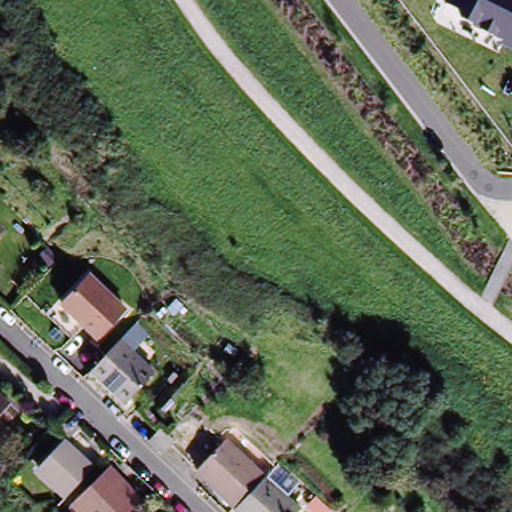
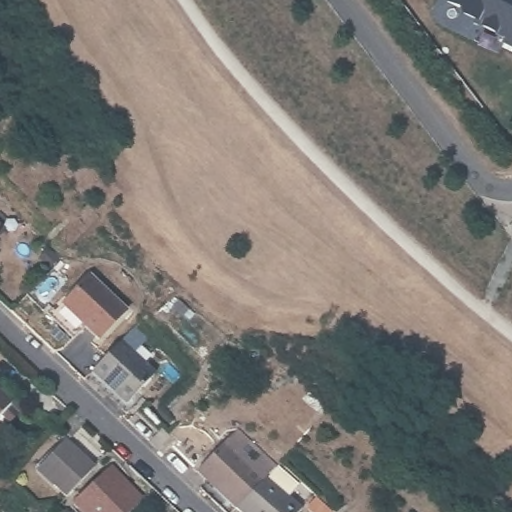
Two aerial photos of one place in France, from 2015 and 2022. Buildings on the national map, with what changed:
unchanged [(502,45),(503,40),(473,28),(474,26),(459,18),(458,8),(443,1),(444,0),(512,0),(512,49),(502,45)]
unchanged [(0,235),(0,229),(3,232),(0,235)]
unchanged [(96,340),(61,305),(89,276),(124,311),(96,340)]
unchanged [(124,333),(158,365),(134,389),(138,393),(128,404),(90,368),(95,363),(124,333)]
unchanged [(0,343),(4,348),(0,352),(0,343)]
unchanged [(11,425),(2,416),(0,418),(0,395),(20,415),(11,425)]
unchanged [(161,433),(149,420),(160,408),(167,414),(170,417),(174,421),(161,433)]
unchanged [(91,463),(61,493),(50,482),(54,479),(38,463),(65,437),(91,463)]
unchanged [(194,470),(224,439),(263,476),(234,508),(194,470)]
unchanged [(141,494),(122,512),(84,512),(74,501),(113,464),(141,494)]
unchanged [(263,476),(297,508),(293,512),(239,512),(234,508),(263,476)]
unchanged [(328,511),(326,512),(310,512),(304,507),(313,497),(328,511)]

